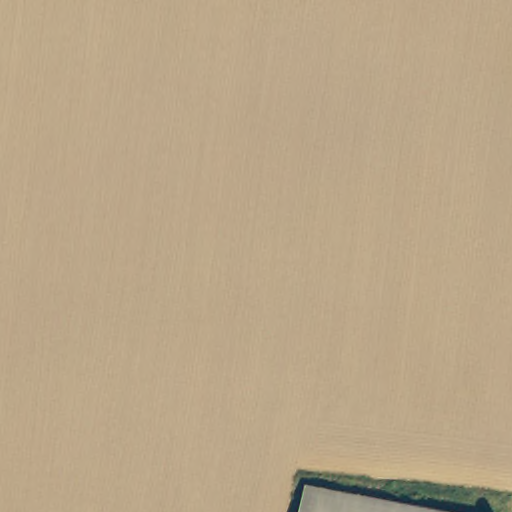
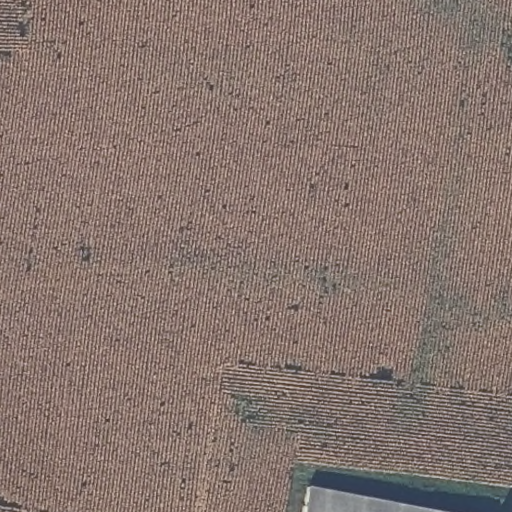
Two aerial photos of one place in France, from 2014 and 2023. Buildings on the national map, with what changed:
unchanged [(420,512),(300,512),(305,489),(420,512)]

